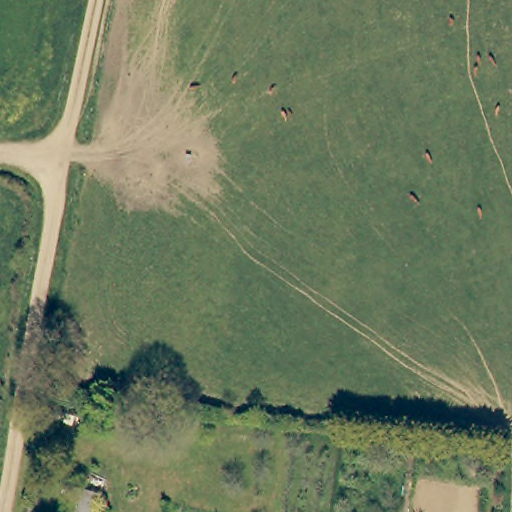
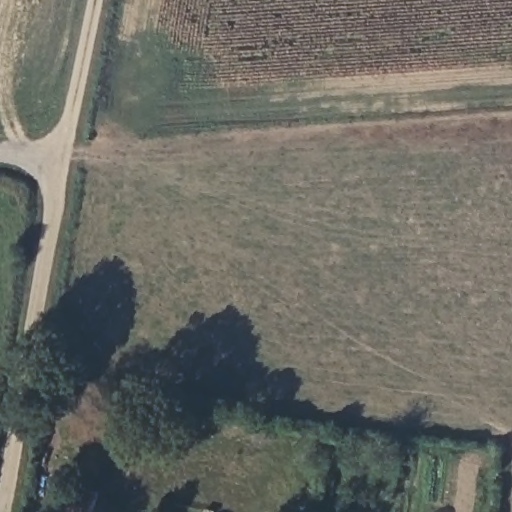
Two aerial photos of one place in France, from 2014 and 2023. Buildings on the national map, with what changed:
unchanged [(96,512),(68,512),(76,486),(102,494),(96,512)]

